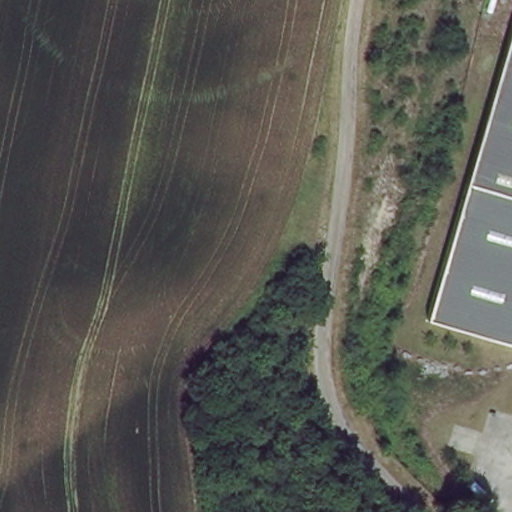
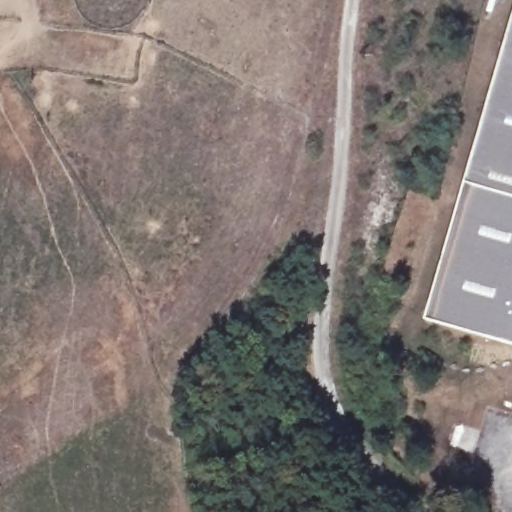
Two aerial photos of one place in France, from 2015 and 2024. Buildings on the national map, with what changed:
unchanged [(512,20),(512,193),(469,181),(512,20)]
unchanged [(512,193),(512,346),(428,324),(469,181),(512,193)]

